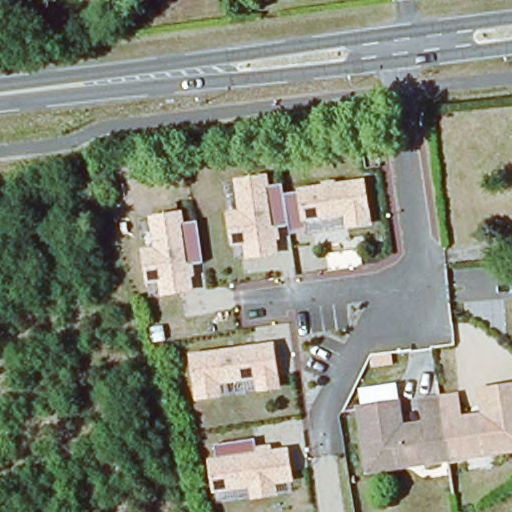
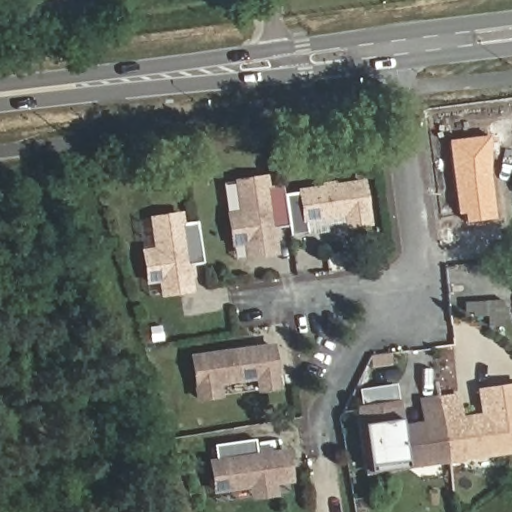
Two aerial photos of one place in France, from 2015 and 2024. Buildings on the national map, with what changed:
new [(487,135),(490,173),(488,174),(493,219),(463,222),(462,214),(456,214),(447,139),(487,135)]
unchanged [(304,235),(304,233),(290,234),(288,225),(278,227),(281,242),(276,243),(278,257),(245,262),(242,245),(230,247),(225,212),(238,210),(233,178),(266,174),(269,187),(282,185),(283,196),(298,195),(296,189),(365,180),(373,225),(304,235)]
unchanged [(203,263),(193,265),(195,278),(191,279),(193,293),(159,298),(156,283),(146,284),(140,248),(153,247),(148,215),(183,210),(185,223),(198,222),(203,263)]
new [(503,325),(486,327),(486,317),(464,319),(463,302),(501,299),(503,325)]
unchanged [(283,391),(258,394),(255,381),(221,386),(224,399),(196,403),(189,354),(275,342),(283,391)]
unchanged [(445,454),(364,464),(357,413),(396,407),(399,430),(422,426),(419,404),(437,401),(454,399),(457,421),(481,418),(478,395),(512,390),(512,444),(446,453),(445,454)]
unchanged [(256,447),(271,445),(273,451),(288,449),(294,482),(276,484),(280,498),(252,502),(249,490),(213,494),(207,459),(216,458),(215,444),(254,439),(256,447)]
unchanged [(512,453),(447,463),(446,463),(366,474),(364,464),(445,454),(446,453),(512,444),(512,453)]

